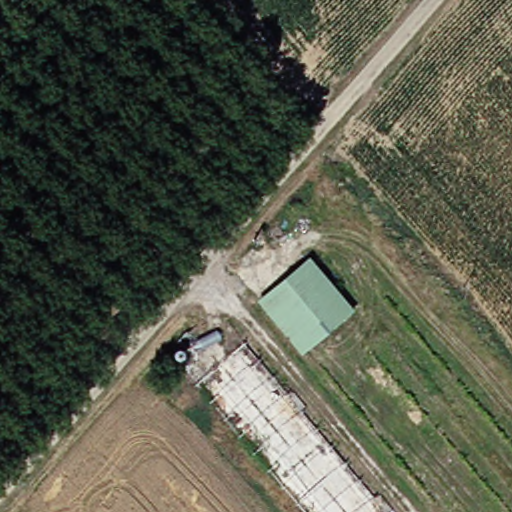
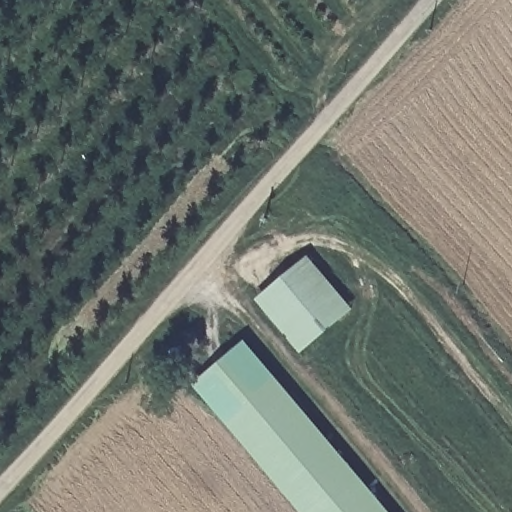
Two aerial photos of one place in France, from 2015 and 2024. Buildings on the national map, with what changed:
unchanged [(343,312),(293,355),(248,301),(300,259),(343,312)]
new [(245,339),(389,512),(301,512),(193,383),(245,339)]

